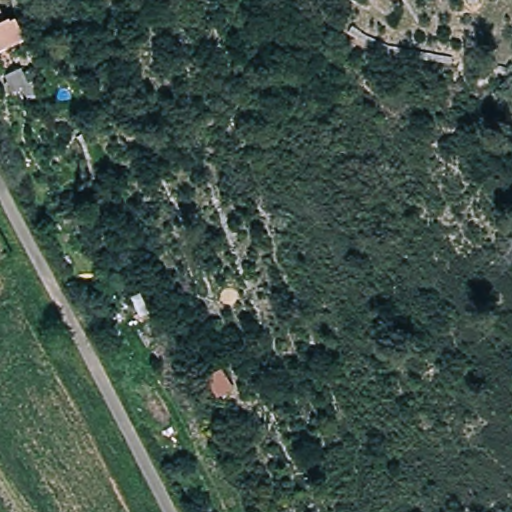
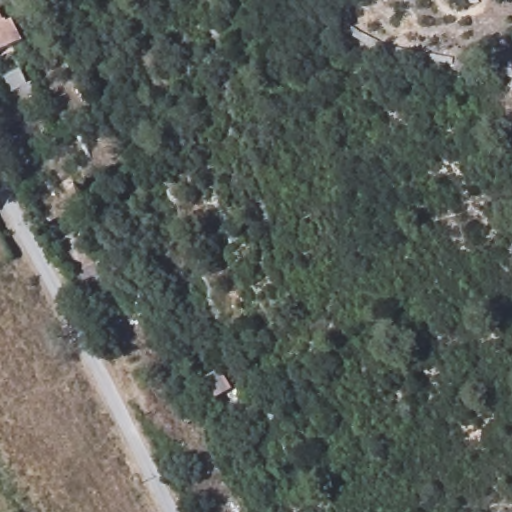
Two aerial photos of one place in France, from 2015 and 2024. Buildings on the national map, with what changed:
unchanged [(12,24),(18,21),(27,40),(0,53),(0,23),(9,19),(12,24)]
unchanged [(30,88),(36,85),(41,95),(28,100),(24,91),(13,96),(6,80),(23,73),(30,88)]
unchanged [(126,309),(105,321),(100,309),(120,298),(126,309)]

